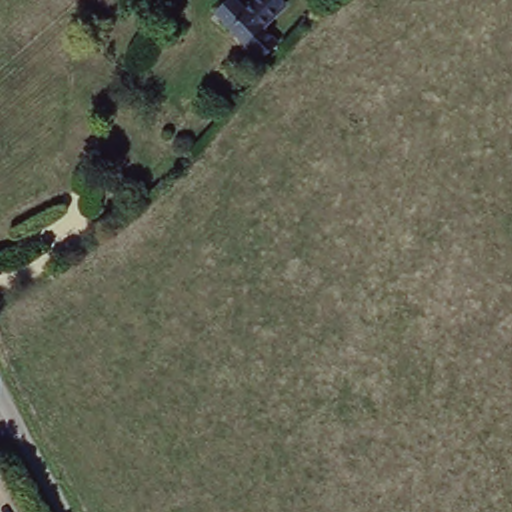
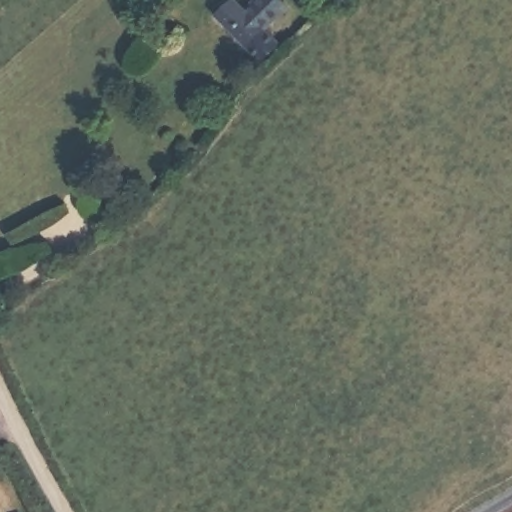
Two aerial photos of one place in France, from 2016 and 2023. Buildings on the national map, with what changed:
unchanged [(279,42),(271,58),(211,12),(223,0),(231,0),(279,42)]

